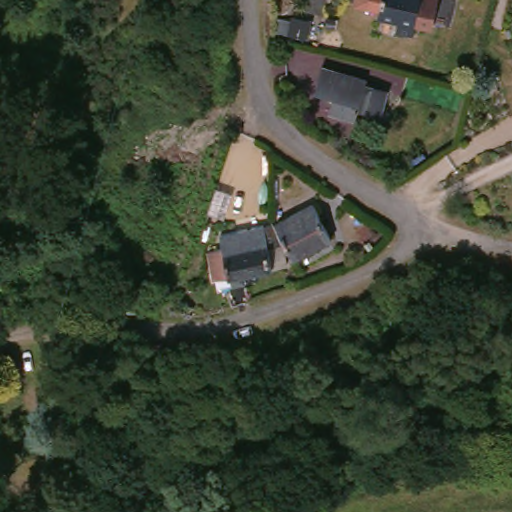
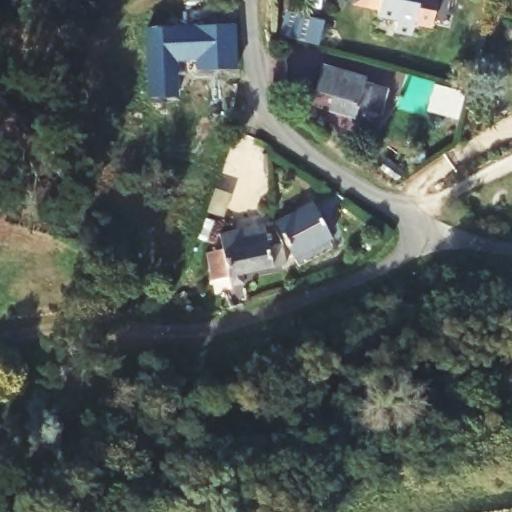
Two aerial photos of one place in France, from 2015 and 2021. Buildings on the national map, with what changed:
unchanged [(426,31),(408,28),(406,41),(389,39),(391,23),(373,21),(376,0),(431,0),(426,31)]
new [(233,22),(235,68),(197,70),(196,58),(174,60),(177,97),(150,98),(145,28),(233,22)]
unchanged [(375,124),(353,118),(348,129),(319,124),(324,108),(305,101),(314,69),(366,82),(365,91),(388,97),(375,124)]
unchanged [(312,209),(329,242),(295,261),(277,228),(312,209)]
unchanged [(230,294),(229,283),(228,280),(218,282),(215,266),(225,264),(220,238),(229,237),(265,230),(268,250),(284,247),(284,249),(288,271),(273,274),(246,280),(249,290),(230,294)]

